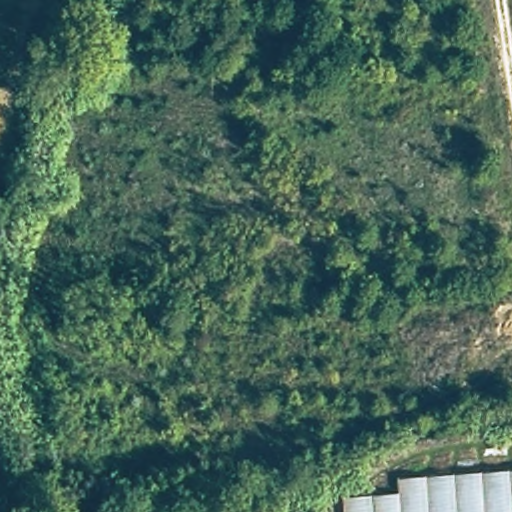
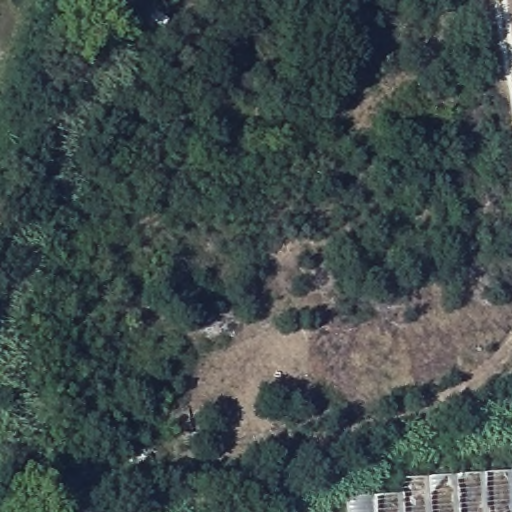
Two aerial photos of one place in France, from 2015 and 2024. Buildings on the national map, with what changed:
unchanged [(397,479),(512,473),(512,512),(345,512),(344,501),(397,497),(397,479)]

